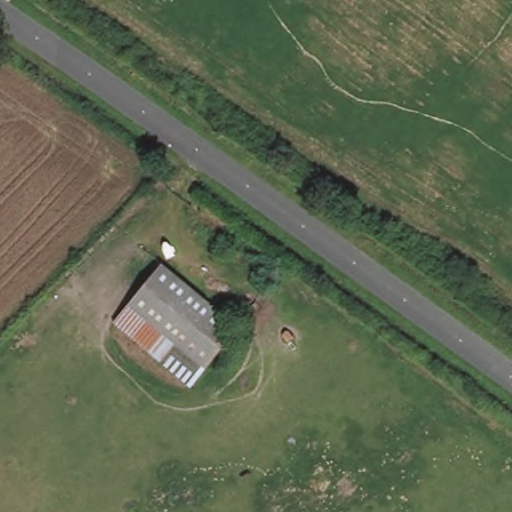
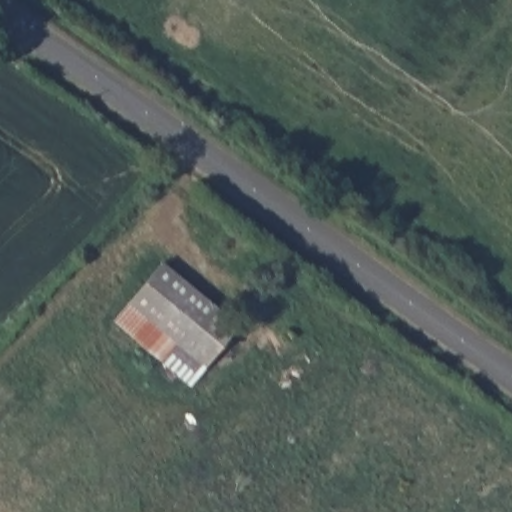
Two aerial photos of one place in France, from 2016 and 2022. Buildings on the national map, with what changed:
unchanged [(163,264),(240,328),(193,386),(114,322),(163,264)]

